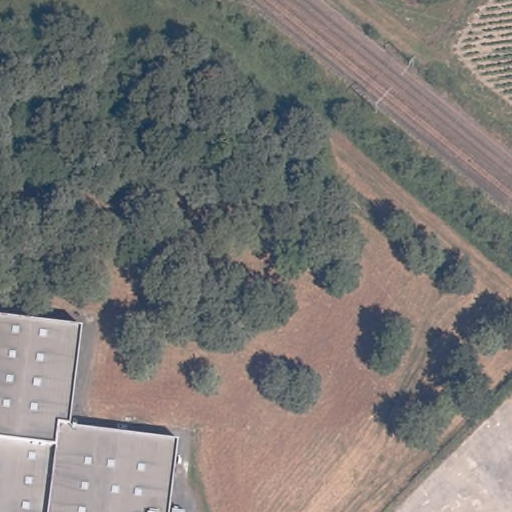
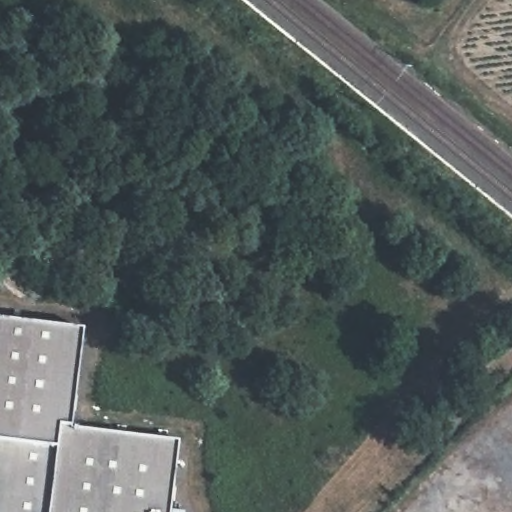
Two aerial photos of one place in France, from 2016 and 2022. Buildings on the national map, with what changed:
unchanged [(9,321),(78,329),(73,371),(67,427),(113,433),(155,438),(174,440),(172,455),(168,496),(166,512),(0,512),(0,320),(9,321)]

